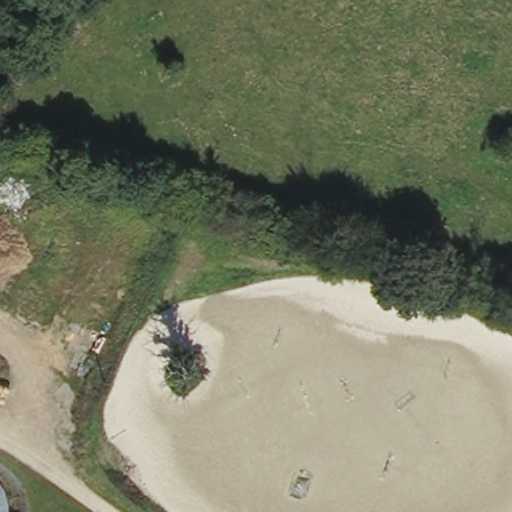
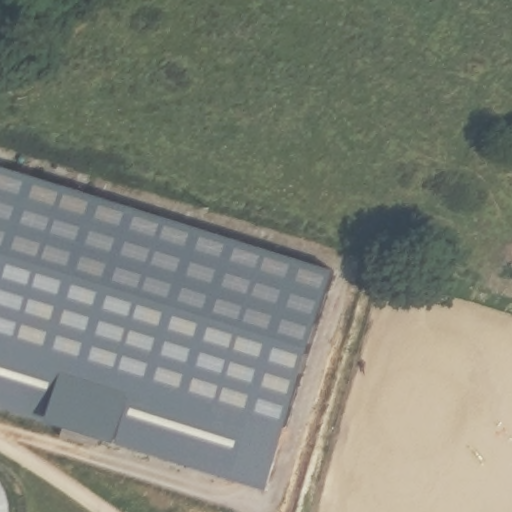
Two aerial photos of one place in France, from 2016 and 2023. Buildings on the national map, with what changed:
new [(264,495),(0,412),(0,173),(331,275),(264,495)]
unchanged [(4,501),(5,512),(0,512),(0,488),(4,501)]

